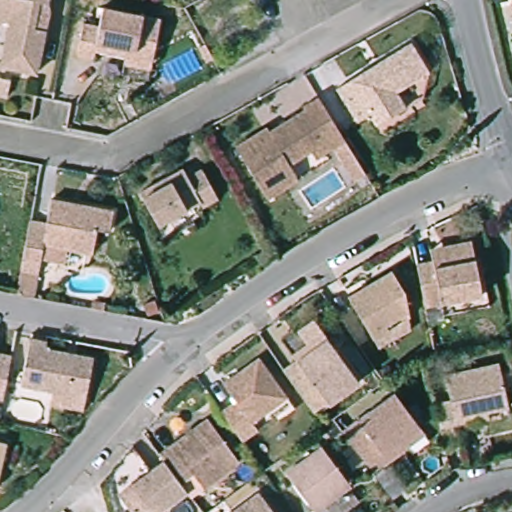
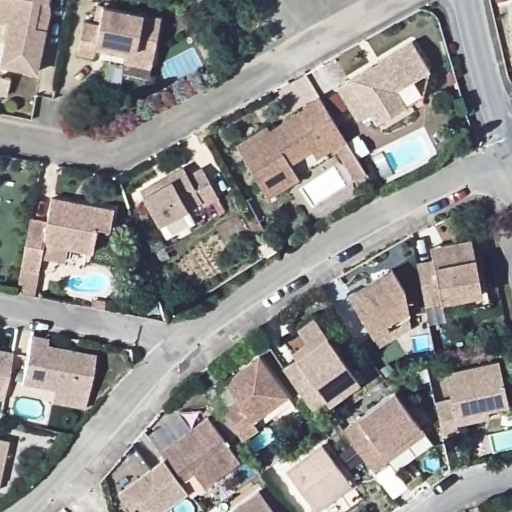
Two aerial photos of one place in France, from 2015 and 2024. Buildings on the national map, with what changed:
unchanged [(42,73),(7,67),(14,26),(0,24),(0,0),(53,0),(52,4),(39,3),(35,30),(50,33),(42,73)]
unchanged [(107,52),(105,61),(89,59),(96,24),(111,26),(114,9),(170,20),(161,63),(107,52)]
unchanged [(411,113),(384,129),(375,117),(363,124),(342,91),(416,48),(434,75),(400,95),(411,113)]
unchanged [(0,82),(13,84),(10,98),(0,96),(0,82)]
unchanged [(359,192),(336,154),(282,184),(286,193),(271,200),(246,159),(277,141),(281,147),(305,134),(308,138),(321,130),(316,120),(329,113),(372,184),(359,192)]
unchanged [(134,200),(177,178),(181,186),(195,179),(210,207),(196,214),(193,209),(180,215),(185,227),(155,241),(150,231),(134,200)]
unchanged [(28,267),(36,220),(52,223),(56,198),(120,210),(115,229),(102,228),(98,250),(49,243),(43,270),(39,294),(23,291),(28,267)]
unchanged [(434,304),(425,262),(437,259),(436,249),(479,241),(490,293),(434,304)]
unchanged [(391,327),(375,337),(349,296),(392,268),(406,289),(409,310),(389,322),(391,327)]
unchanged [(331,410),(328,407),(317,414),(287,374),(301,365),(296,358),(326,336),(331,343),(363,387),(331,410)]
unchanged [(27,384),(36,337),(53,340),(53,347),(100,357),(93,397),(27,384)]
unchanged [(242,431),(221,403),(234,394),(221,374),(256,350),(290,396),(242,431)]
unchanged [(3,404),(0,404),(0,357),(12,359),(3,404)]
unchanged [(494,411),(495,419),(463,426),(464,434),(449,438),(442,403),(455,400),(450,374),(504,363),(512,405),(512,407),(494,411)]
unchanged [(372,467),(343,427),(394,389),(424,429),(372,467)]
unchanged [(208,485),(198,471),(186,479),(170,458),(164,450),(211,416),(242,459),(208,485)]
unchanged [(0,470),(0,441),(7,442),(0,470)]
unchanged [(318,512),(314,512),(287,474),(322,449),(350,488),(318,512)]
unchanged [(160,512),(140,512),(124,491),(170,458),(186,479),(193,489),(160,512)]
unchanged [(259,491),(274,512),(230,512),(259,491)]

